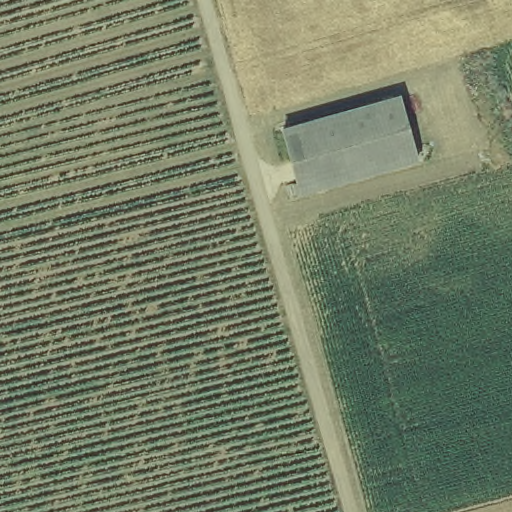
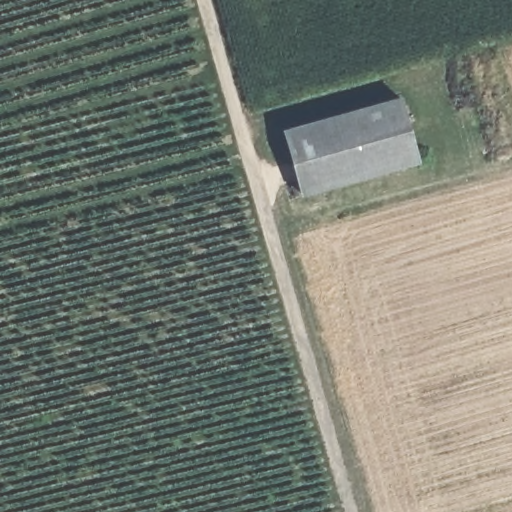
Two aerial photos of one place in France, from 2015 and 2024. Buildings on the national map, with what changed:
unchanged [(293,131),(409,99),(427,162),(312,195),(293,131)]

